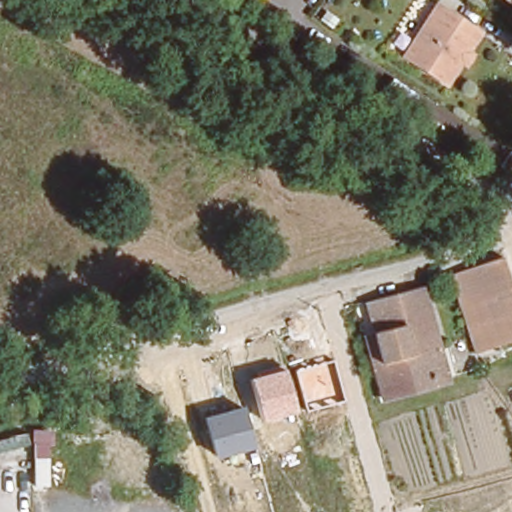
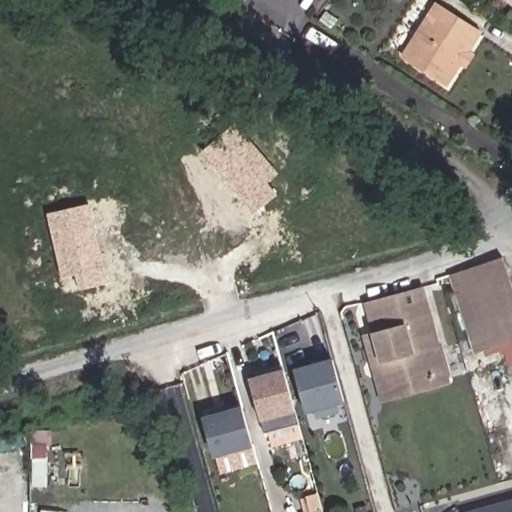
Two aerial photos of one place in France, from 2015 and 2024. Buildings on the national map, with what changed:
unchanged [(466,69),(459,65),(455,71),(458,73),(449,86),(405,57),(438,7),(482,36),(470,55),(474,58),(466,69)]
new [(267,182),(278,194),(254,213),(202,150),(235,123),(278,174),(267,182)]
new [(79,289),(75,275),(61,278),(47,214),(89,204),(107,283),(79,289)]
unchanged [(512,284),(512,341),(491,346),(473,351),(450,285),(449,278),(447,271),(502,254),(504,261),(512,284)]
unchanged [(362,332),(375,328),(367,302),(422,286),(447,378),(394,393),(382,397),(362,332)]
unchanged [(343,400),(306,411),(295,370),(333,360),(343,400)]
unchanged [(296,411),(261,420),(249,377),(285,368),(296,411)]
unchanged [(254,446),(214,457),(203,415),(243,405),(254,446)]
new [(48,430),(48,487),(33,487),(33,430),(48,430)]
new [(317,495),(322,512),(307,512),(303,498),(317,495)]
new [(512,512),(465,512),(512,498),(512,512)]

